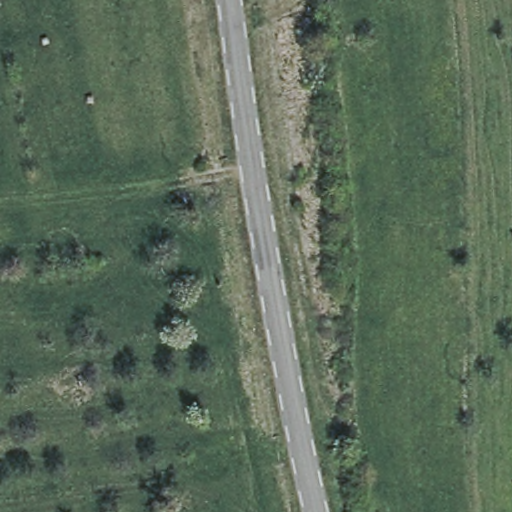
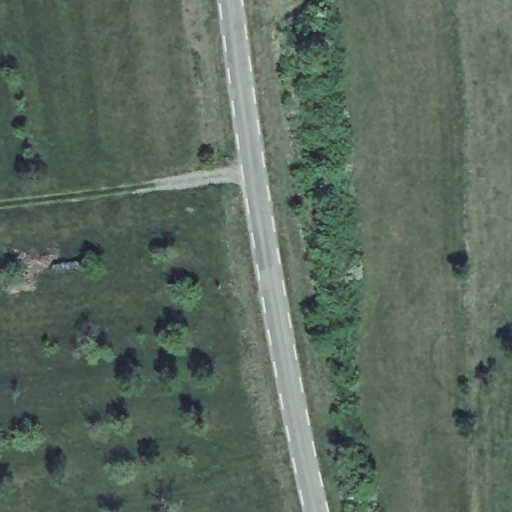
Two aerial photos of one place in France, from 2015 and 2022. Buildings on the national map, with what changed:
[]

